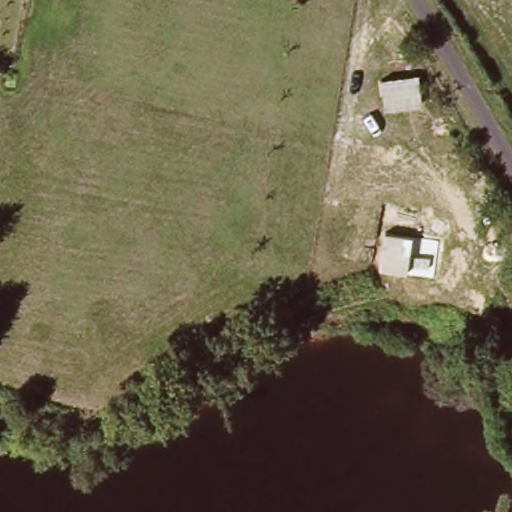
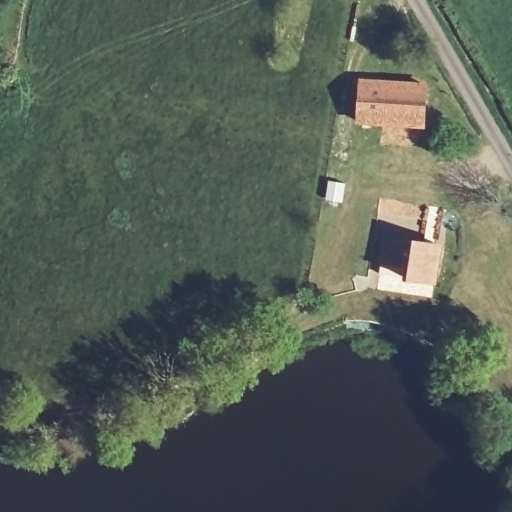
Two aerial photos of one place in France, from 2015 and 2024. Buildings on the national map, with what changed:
new [(427,85),(424,125),(358,121),(361,80),(427,85)]
new [(437,284),(404,279),(405,263),(380,260),(384,234),(443,243),(437,284)]

